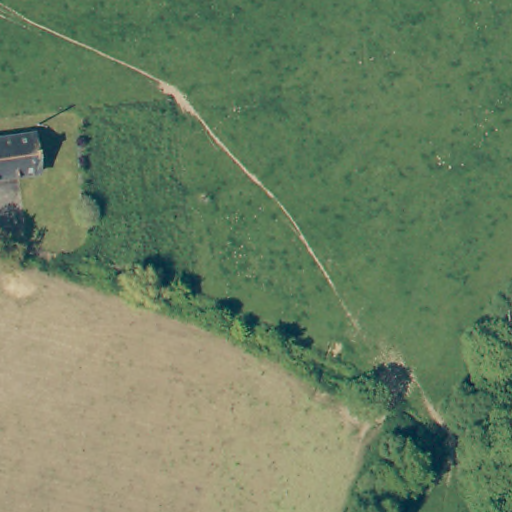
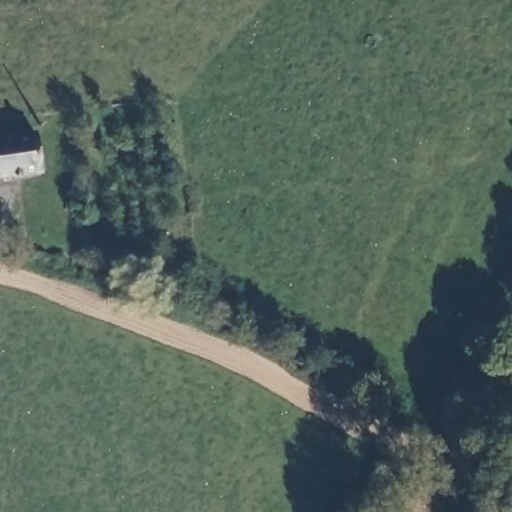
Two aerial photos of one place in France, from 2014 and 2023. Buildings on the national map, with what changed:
unchanged [(41,181),(0,187),(0,143),(34,139),(41,181)]

